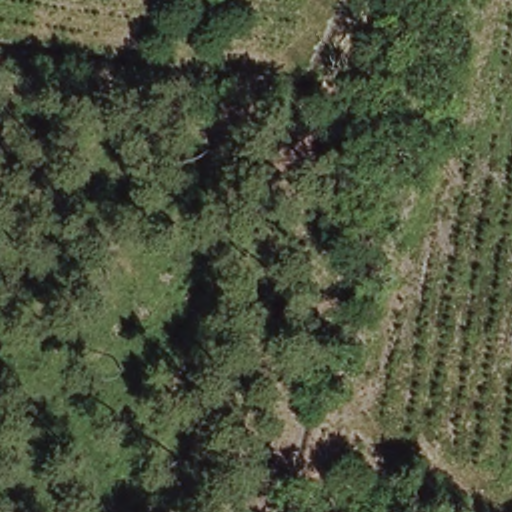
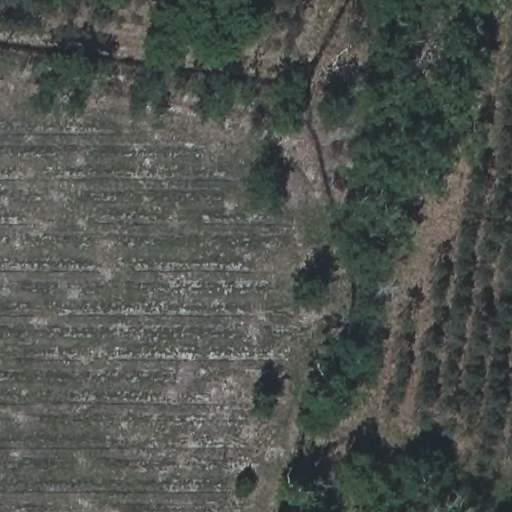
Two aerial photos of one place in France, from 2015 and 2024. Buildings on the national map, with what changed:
unchanged [(419,505),(442,512),(417,512),(419,505)]

